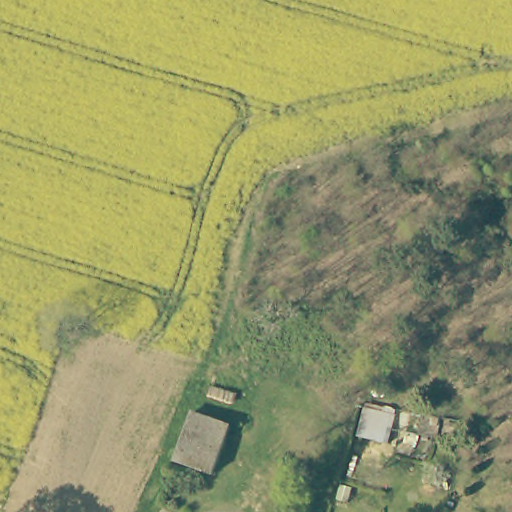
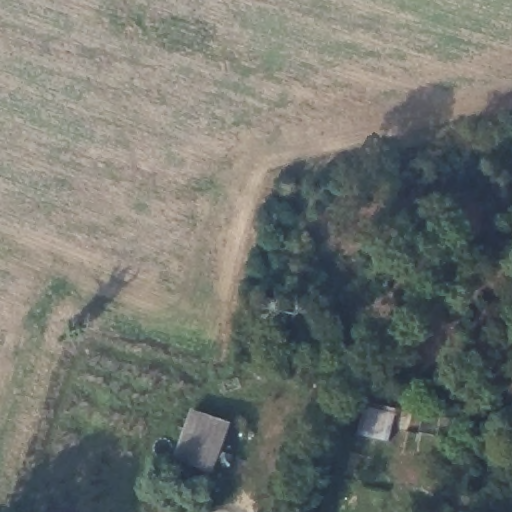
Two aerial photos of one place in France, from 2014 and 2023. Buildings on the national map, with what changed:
unchanged [(178,458),(195,411),(231,424),(214,473),(178,458)]

